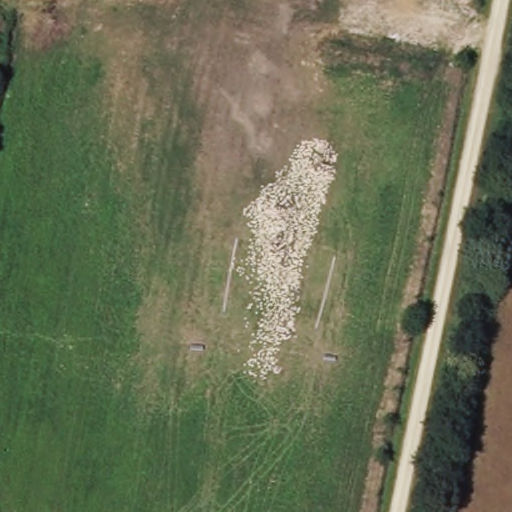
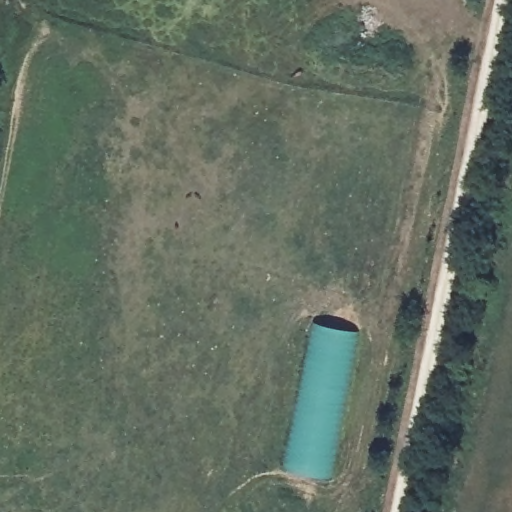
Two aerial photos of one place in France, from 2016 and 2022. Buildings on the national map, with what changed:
new [(286,469),(316,322),(358,331),(331,477),(286,469)]

